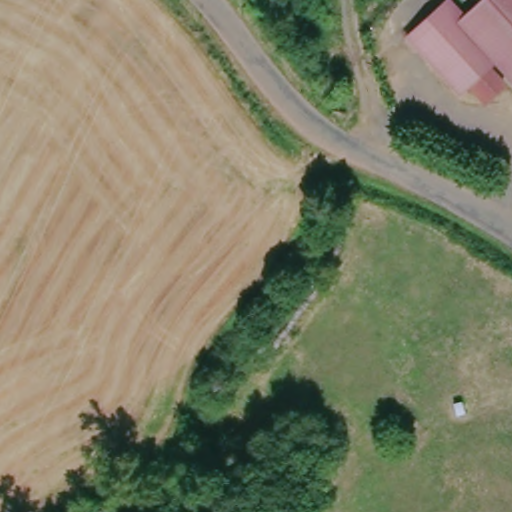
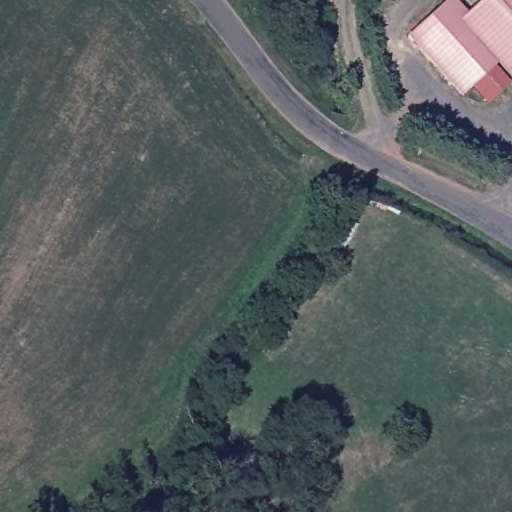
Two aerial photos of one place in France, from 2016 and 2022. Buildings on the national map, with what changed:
unchanged [(482,99),(469,85),(459,93),(407,32),(445,0),(456,0),(467,13),(503,56),(495,62),(490,67),(503,82),(482,99)]
unchanged [(503,56),(467,13),(484,0),(512,0),(512,82),(495,62),(503,56)]

